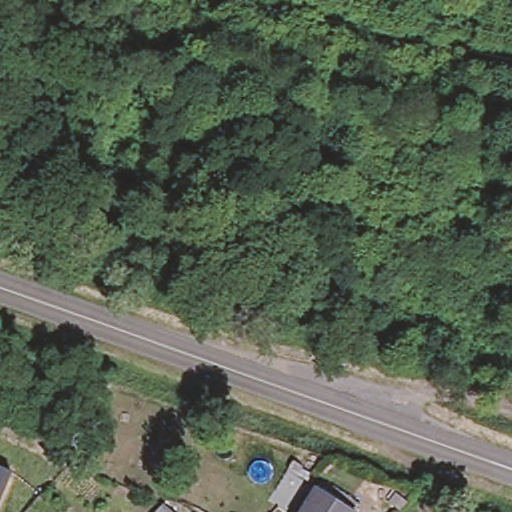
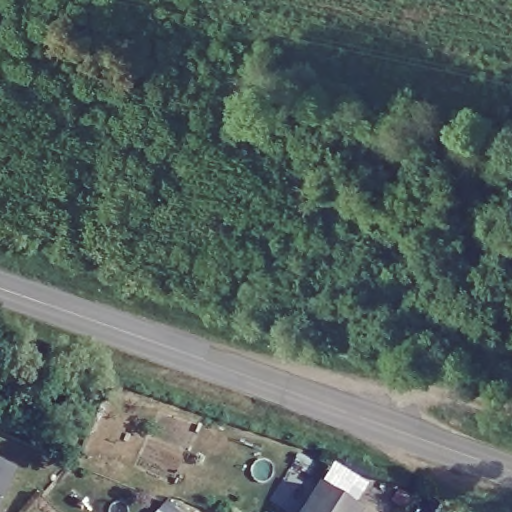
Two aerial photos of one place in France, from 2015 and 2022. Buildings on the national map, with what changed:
unchanged [(17,473),(0,510),(0,466),(17,473)]
unchanged [(317,488),(354,512),(301,512),(317,488)]

